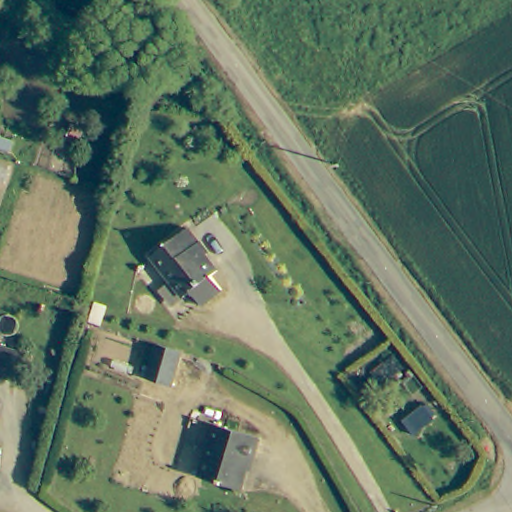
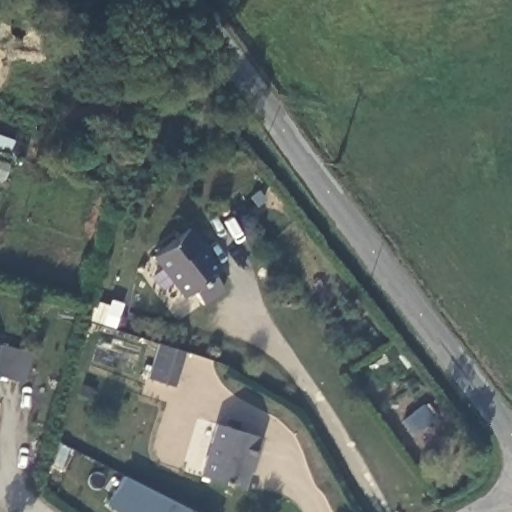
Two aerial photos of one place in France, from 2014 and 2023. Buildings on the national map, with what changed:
unchanged [(187,231),(215,268),(209,273),(219,286),(197,302),(187,290),(180,295),(151,256),(187,231)]
unchanged [(155,341),(179,349),(168,384),(144,376),(155,341)]
unchanged [(20,380),(0,375),(0,344),(27,350),(20,380)]
unchanged [(213,427),(258,440),(253,457),(249,456),(240,490),(199,477),(213,427)]
new [(122,512),(110,512),(104,507),(121,478),(188,511),(190,512),(125,512),(123,510),(122,512)]

